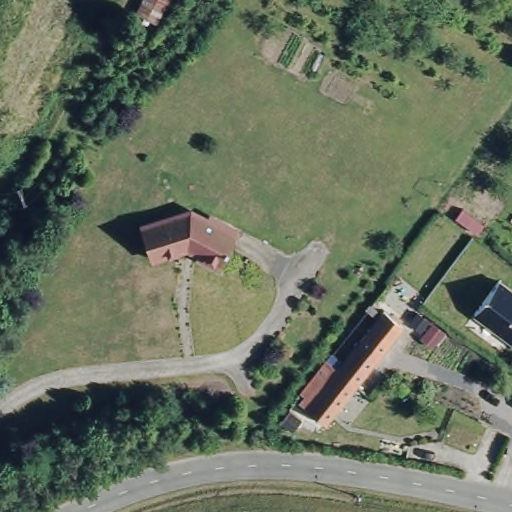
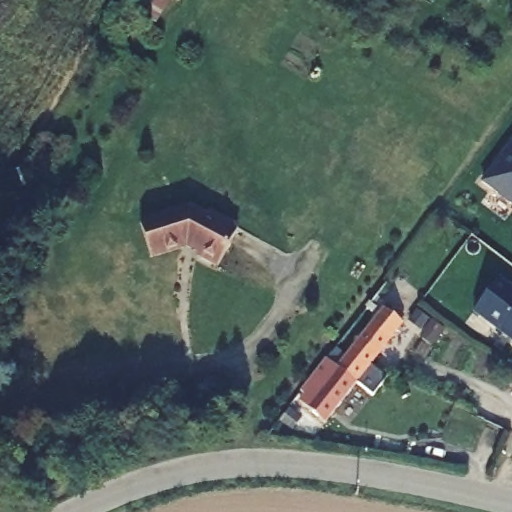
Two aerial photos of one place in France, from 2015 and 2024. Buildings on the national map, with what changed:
new [(512,143),(512,205),(483,182),(512,143)]
unchanged [(218,262),(196,254),(197,245),(189,242),(145,251),(138,224),(191,209),(205,216),(211,211),(237,225),(218,262)]
unchanged [(512,287),(512,341),(474,313),(499,277),(512,287)]
unchanged [(381,310),(399,325),(349,386),(331,370),(381,310)]
unchanged [(320,423),(299,404),(303,399),(299,394),(324,364),(331,370),(349,386),(320,423)]
unchanged [(293,415),(281,429),(276,425),(288,411),(293,415)]
unchanged [(369,439),(364,451),(344,443),(349,431),(369,439)]

